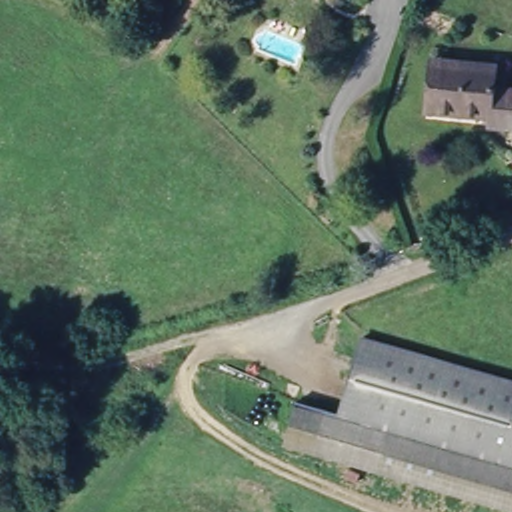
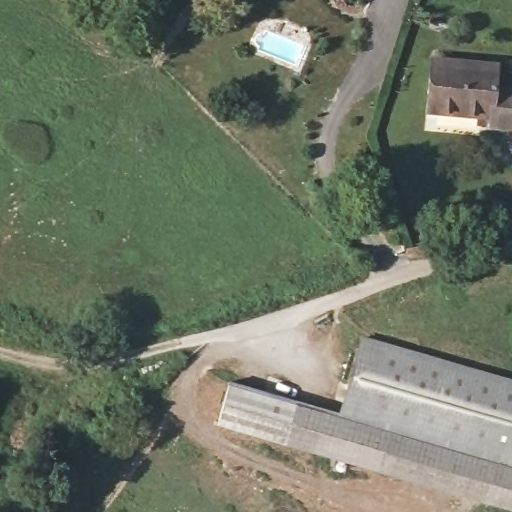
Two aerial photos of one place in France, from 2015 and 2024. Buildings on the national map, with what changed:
unchanged [(477,104),(477,114),(442,113),(428,112),(429,66),(444,66),(499,67),(498,95),(512,95),(512,122),(492,121),(493,105),(477,104)]
unchanged [(510,512),(279,443),(290,401),(335,415),(357,336),(512,382),(512,512),(510,512)]
new [(214,424),(227,382),(290,401),(279,443),(214,424)]

